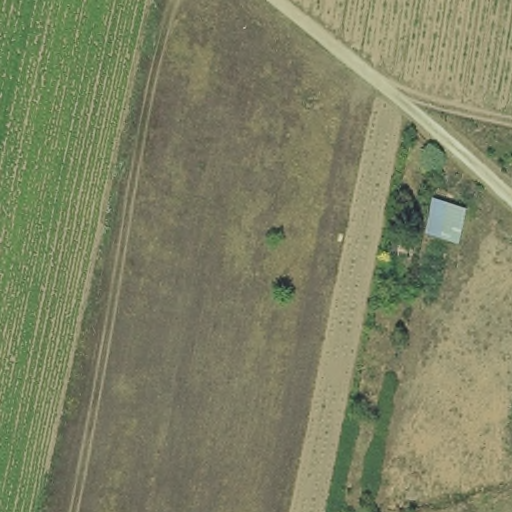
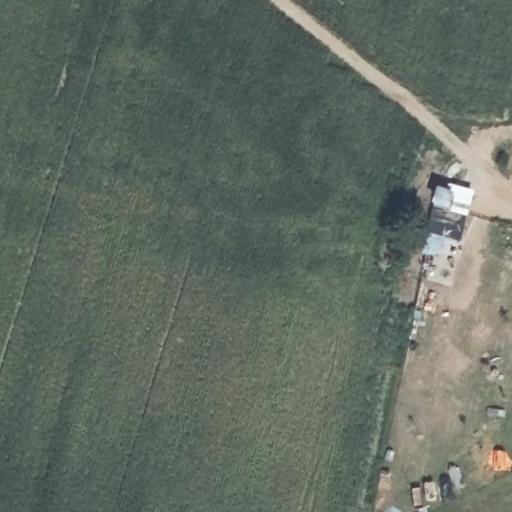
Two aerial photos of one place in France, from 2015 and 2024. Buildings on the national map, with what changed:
unchanged [(465,245),(430,235),(439,197),(474,204),(465,245)]

